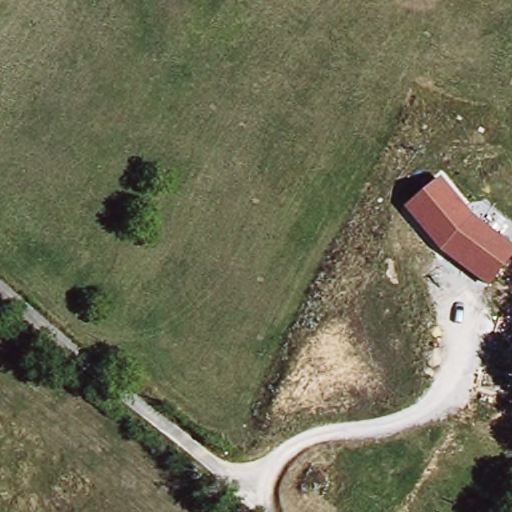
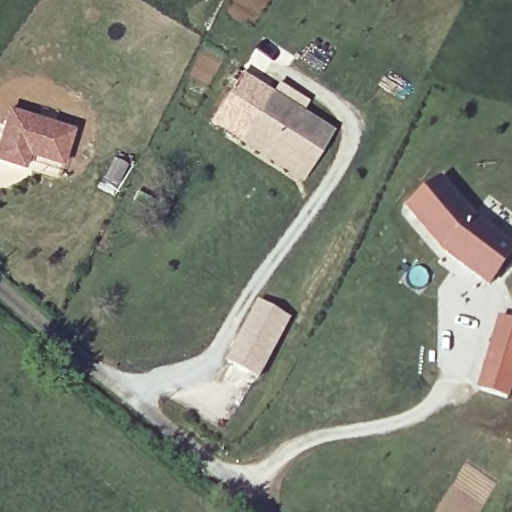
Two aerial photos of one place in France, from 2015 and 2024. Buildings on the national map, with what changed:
new [(271,90),(335,130),(303,181),(240,141),(271,90)]
new [(75,129),(63,166),(28,155),(25,170),(0,161),(0,133),(7,108),(75,129)]
unchanged [(441,251),(405,206),(445,175),(471,215),(512,245),(512,260),(489,286),(441,251)]
new [(290,318),(260,379),(225,362),(257,301),(290,318)]
new [(498,316),(512,320),(512,391),(510,400),(477,390),(498,316)]

